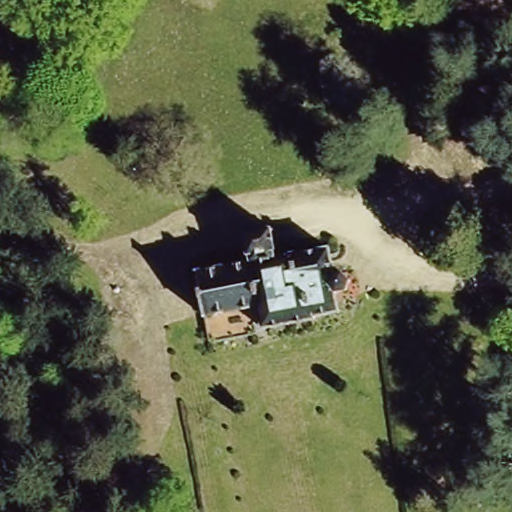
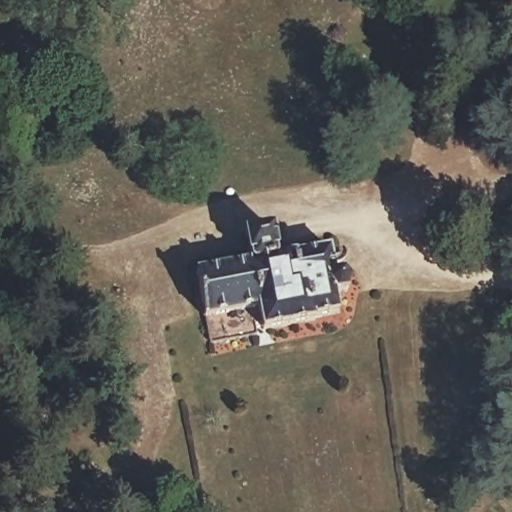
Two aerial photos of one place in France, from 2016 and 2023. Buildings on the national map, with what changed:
unchanged [(207,336),(193,268),(248,259),(245,227),(276,225),(278,251),(331,245),(334,270),(343,271),(350,278),(351,285),(348,291),(340,292),(341,312),(260,327),(207,336)]

